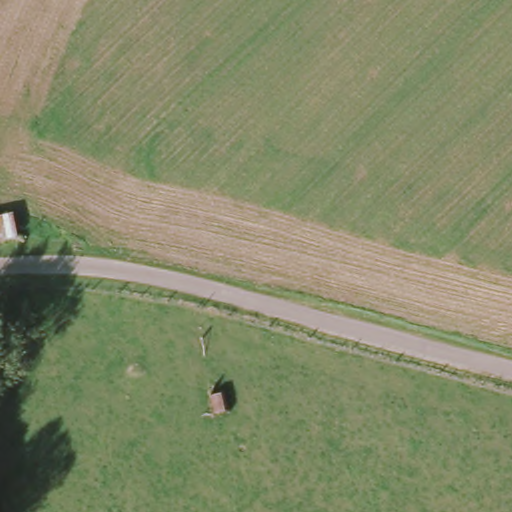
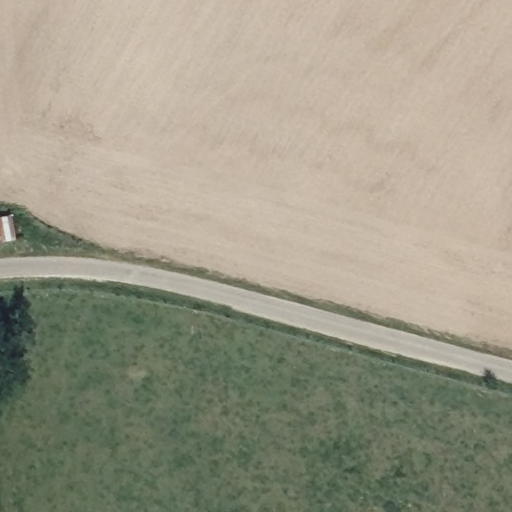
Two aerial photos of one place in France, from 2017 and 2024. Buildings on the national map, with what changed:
unchanged [(0,247),(0,217),(10,215),(18,244),(0,247)]

